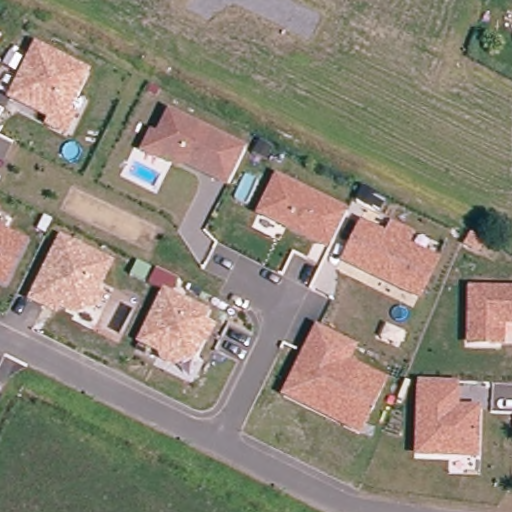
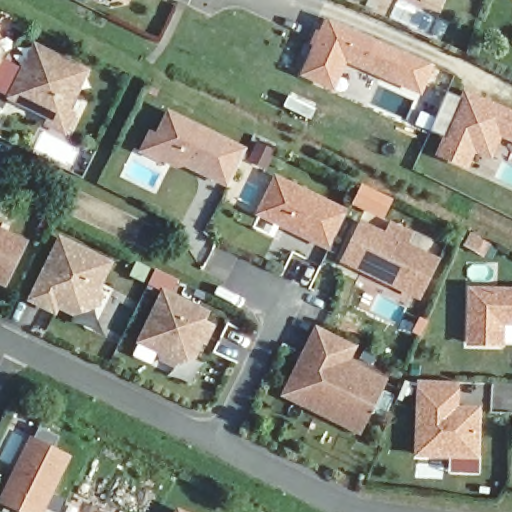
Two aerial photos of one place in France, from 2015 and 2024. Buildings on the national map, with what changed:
new [(121,0),(129,0),(127,3),(121,0)]
new [(423,0),(446,0),(442,9),(423,0)]
new [(325,16),(435,64),(420,96),(346,65),(332,92),(297,75),(325,16)]
unchanged [(45,127),(49,119),(6,99),(35,42),(93,73),(73,112),(79,114),(66,138),(45,127)]
new [(413,123),(419,110),(435,116),(446,91),(459,97),(464,86),(512,109),(512,144),(502,139),(492,161),(475,154),(467,170),(432,156),(442,136),(413,123)]
unchanged [(195,170),(181,169),(161,159),(159,164),(137,153),(150,127),(159,130),(169,109),(246,146),(226,187),(195,170)]
unchanged [(276,175),(347,209),(327,246),(256,212),(276,175)]
new [(361,181),(393,198),(383,219),(350,204),(361,181)]
unchanged [(0,215),(0,207),(4,208),(0,215)]
unchanged [(361,220),(385,234),(391,221),(415,234),(410,244),(440,261),(421,301),(342,263),(361,220)]
unchanged [(0,228),(31,241),(6,288),(0,286),(0,228)]
unchanged [(60,233),(114,262),(101,289),(107,293),(99,310),(75,318),(59,309),(56,317),(27,302),(60,233)]
unchanged [(162,288),(212,310),(207,321),(219,326),(210,348),(205,345),(197,360),(179,365),(137,344),(162,288)]
unchanged [(467,288),(512,288),(512,326),(506,325),(504,348),(467,348),(467,288)]
unchanged [(283,394),(316,323),(361,346),(353,362),(387,376),(359,436),(283,394)]
unchanged [(418,381),(461,382),(460,407),(481,407),(477,461),(415,460),(418,381)]
new [(0,504),(0,499),(31,437),(72,457),(47,510),(52,512),(16,512),(0,504)]
new [(177,509),(183,512),(176,512),(177,509)]

